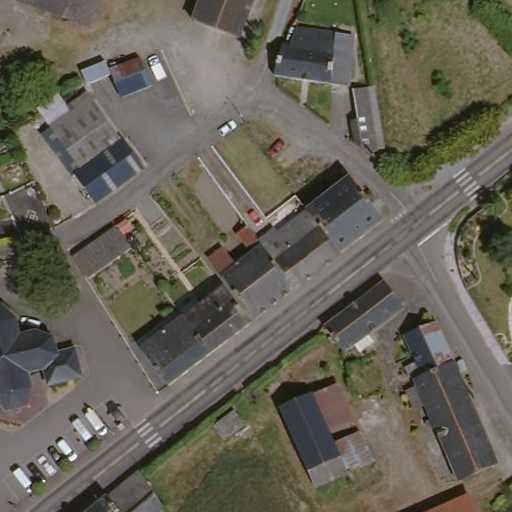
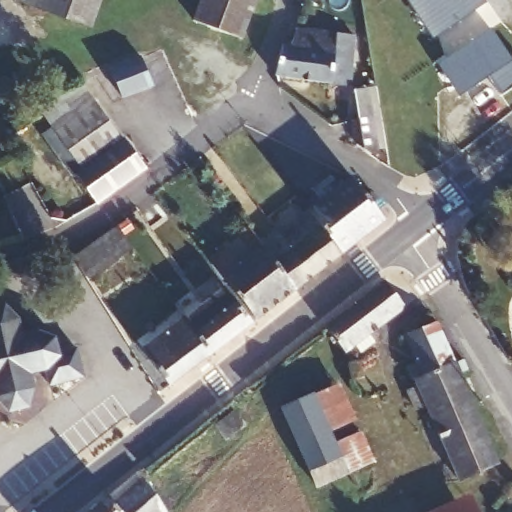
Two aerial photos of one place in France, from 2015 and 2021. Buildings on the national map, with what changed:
unchanged [(30,0),(93,0),(85,20),(30,0)]
unchanged [(199,21),(207,0),(257,0),(243,37),(199,21)]
unchanged [(284,70),(293,39),(302,41),(308,24),(363,39),(356,89),(284,70)]
new [(438,60),(490,27),(512,59),(512,87),(501,94),(489,75),(460,95),(438,60)]
unchanged [(120,91),(116,63),(146,56),(152,82),(120,91)]
unchanged [(359,95),(383,91),(384,95),(394,151),(358,148),(355,125),(363,124),(359,97),(359,95)]
unchanged [(51,123),(94,94),(128,141),(149,169),(101,205),(77,171),(83,167),(51,123)]
unchanged [(351,172),(382,214),(340,247),(308,205),(351,172)]
unchanged [(307,206),(308,205),(340,247),(296,282),(262,240),(307,206)]
unchanged [(112,225),(128,246),(93,270),(82,248),(112,225)]
unchanged [(246,267),(263,256),(246,233),(252,229),(262,240),(296,282),(272,302),(259,312),(233,275),(237,272),(246,267)]
unchanged [(382,278),(405,306),(375,335),(381,341),(365,356),(359,350),(353,356),(324,323),(382,278)]
unchanged [(201,291),(206,297),(225,283),(251,319),(215,349),(186,318),(178,308),(201,291)]
unchanged [(29,332),(46,327),(48,327),(50,328),(52,330),(53,330),(54,330),(56,331),(57,333),(59,335),(60,336),(61,338),(62,340),(63,342),(64,344),(83,340),(91,375),(53,383),(50,375),(31,380),(35,392),(26,406),(14,410),(1,404),(0,401),(0,311),(19,306),(29,332)]
unchanged [(149,344),(186,318),(215,349),(175,382),(149,344)]
unchanged [(433,321),(452,360),(491,462),(453,477),(422,394),(409,398),(402,381),(413,376),(412,373),(423,368),(408,331),(433,321)]
unchanged [(362,363),(366,380),(355,382),(352,365),(362,363)]
unchanged [(311,402),(327,395),(356,475),(345,479),(323,487),(296,408),(311,402)]
unchanged [(132,463),(154,506),(157,512),(73,512),(132,463)]
unchanged [(472,501),(477,512),(451,512),(472,501)]

